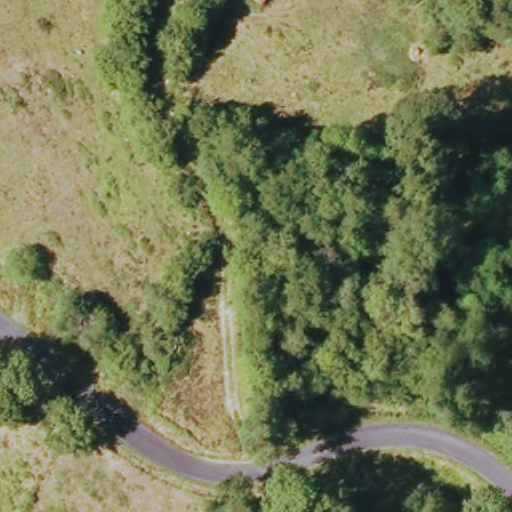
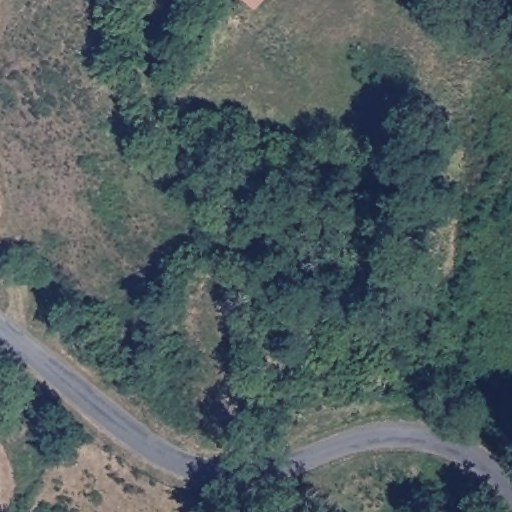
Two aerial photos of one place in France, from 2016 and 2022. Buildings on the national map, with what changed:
unchanged [(258,0),(268,0),(263,5),(258,0)]

